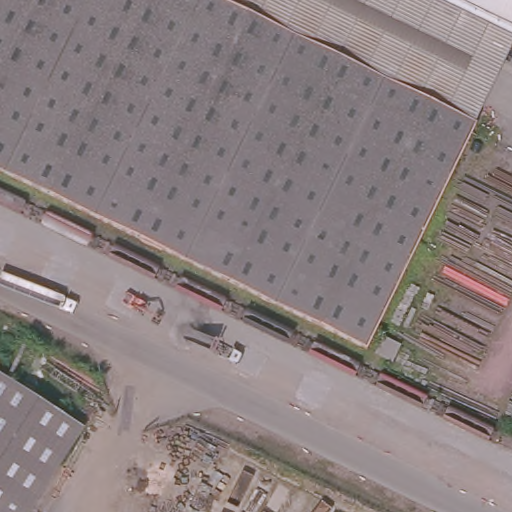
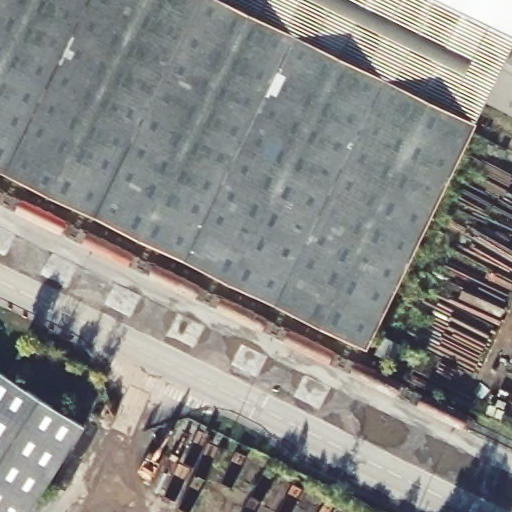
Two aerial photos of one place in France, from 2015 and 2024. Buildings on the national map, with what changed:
unchanged [(0,173),(0,0),(512,0),(512,43),(510,47),(509,50),(475,124),(368,352),(0,173)]
unchanged [(83,430),(30,512),(0,512),(0,376),(83,430)]

